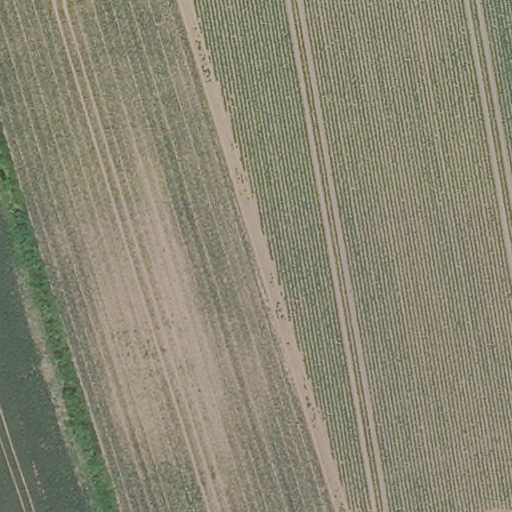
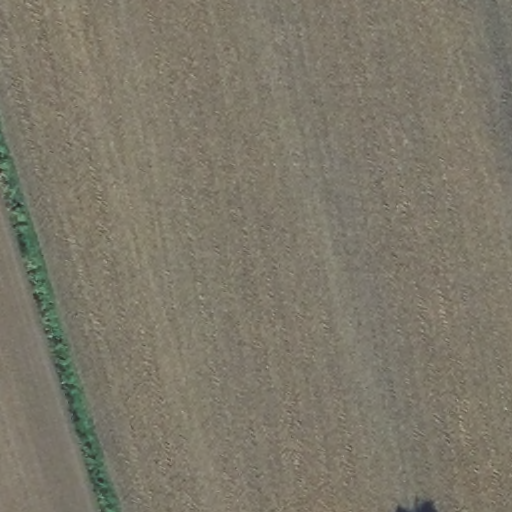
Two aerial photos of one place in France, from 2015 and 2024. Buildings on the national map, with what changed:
[]

